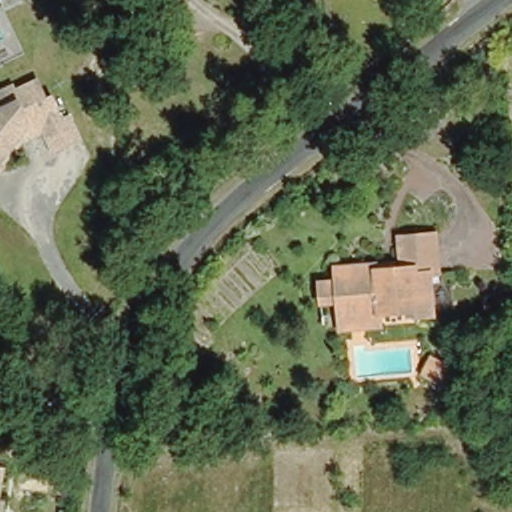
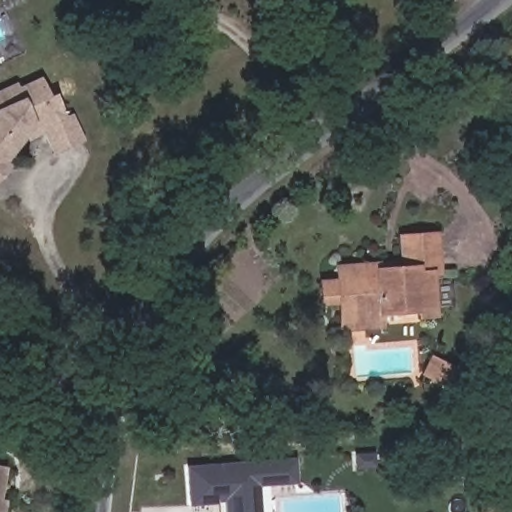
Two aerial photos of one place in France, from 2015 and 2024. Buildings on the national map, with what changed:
unchanged [(36,161),(29,136),(27,127),(6,136),(0,142),(0,98),(5,96),(6,99),(29,93),(34,113),(40,111),(45,131),(52,129),(59,154),(36,161)]
unchanged [(334,278),(333,263),(372,257),(373,265),(402,262),(397,230),(437,225),(443,263),(430,265),(432,276),(418,279),(422,303),(384,308),(385,314),(342,318),(339,296),(324,298),(322,279),(334,278)]
unchanged [(133,453),(142,454),(140,466),(130,465),(133,453)]
new [(217,505),(187,506),(185,465),(294,458),(296,483),(259,485),(261,512),(217,512),(217,505)]
unchanged [(0,485),(0,465),(2,465),(0,485)]
unchanged [(0,498),(4,498),(3,512),(0,512),(0,498)]

